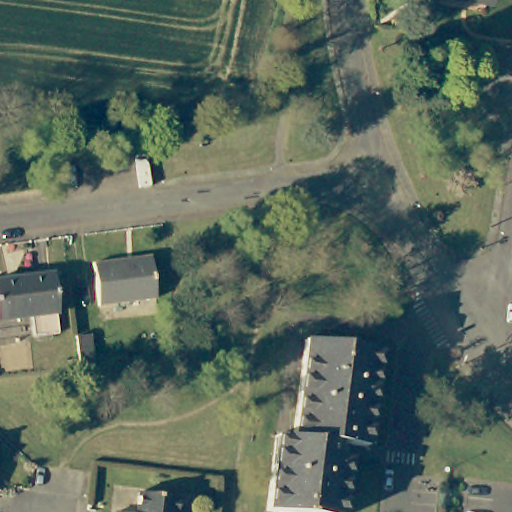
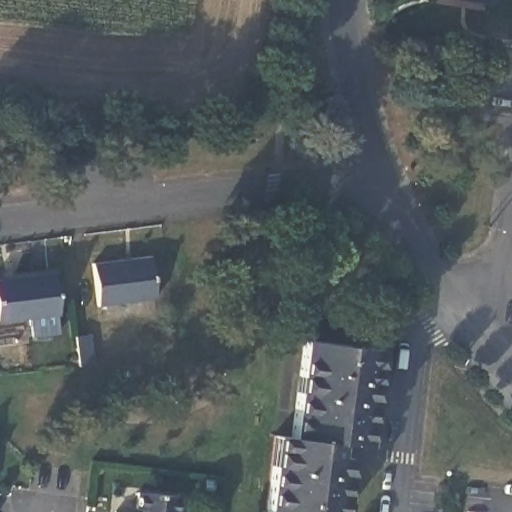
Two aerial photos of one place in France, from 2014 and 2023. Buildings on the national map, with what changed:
unchanged [(154,255),(154,297),(98,301),(95,257),(154,255)]
unchanged [(55,312),(0,317),(0,277),(51,272),(55,312)]
unchanged [(73,325),(88,324),(89,355),(76,357),(73,325)]
unchanged [(380,345),(367,445),(349,442),(341,512),(297,512),(267,508),(277,432),(294,435),(307,337),(380,345)]
unchanged [(113,506),(133,509),(136,487),(177,494),(175,512),(112,512),(113,506)]

